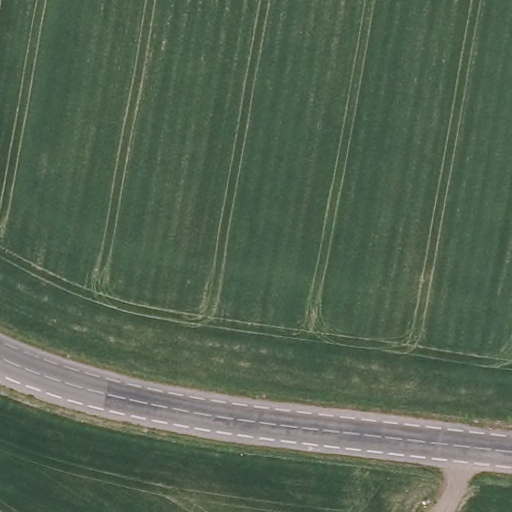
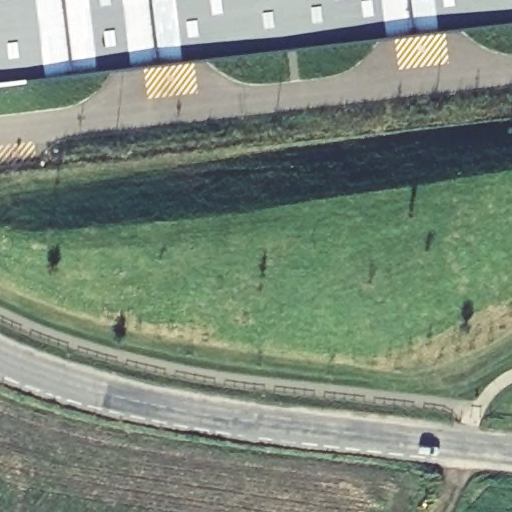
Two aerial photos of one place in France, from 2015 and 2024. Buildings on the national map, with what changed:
new [(0,0),(512,0),(512,17),(0,80),(0,0)]

